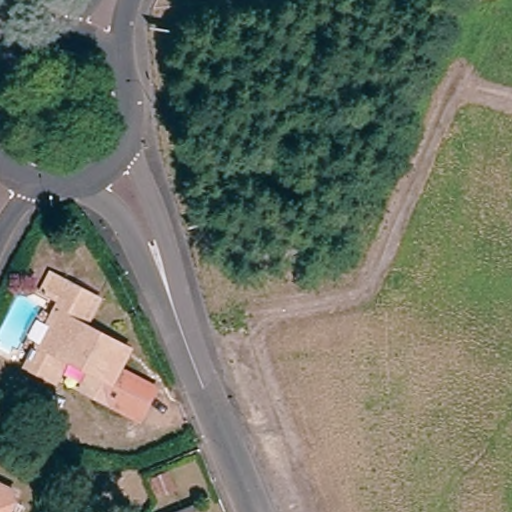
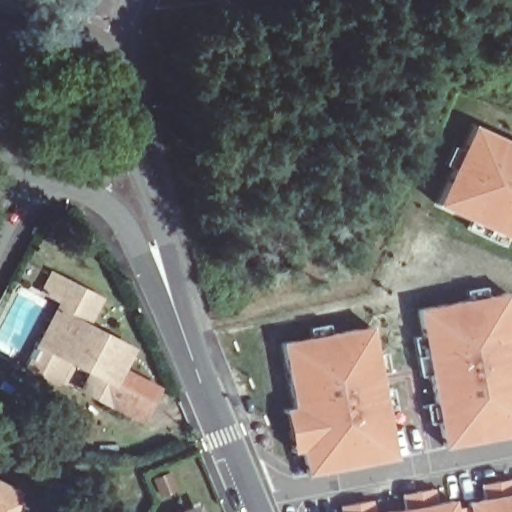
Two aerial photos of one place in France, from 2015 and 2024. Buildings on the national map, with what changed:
new [(512,143),(512,239),(437,205),(473,125),(512,143)]
unchanged [(153,386),(142,415),(80,390),(86,372),(60,362),(52,381),(23,369),(30,351),(36,353),(64,288),(99,303),(90,324),(94,326),(128,340),(125,346),(116,370),(153,386)]
new [(512,317),(512,436),(444,450),(417,308),(507,291),(512,317)]
new [(397,459),(307,476),(302,450),(292,452),(284,408),(293,406),(282,342),(372,326),(397,459)]
new [(401,494),(434,488),(436,502),(454,498),(455,505),(483,498),(481,484),(512,478),(512,482),(512,512),(382,512),(404,508),(401,494)]
unchanged [(8,512),(0,512),(0,484),(19,493),(8,512)]
new [(374,512),(341,512),(340,507),(372,499),(374,512)]
unchanged [(209,512),(179,512),(206,503),(209,512)]

